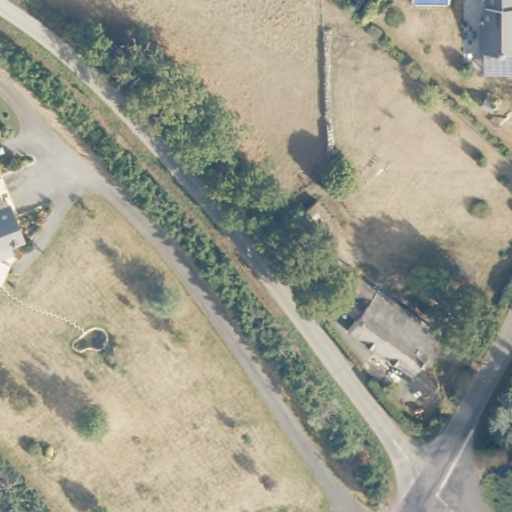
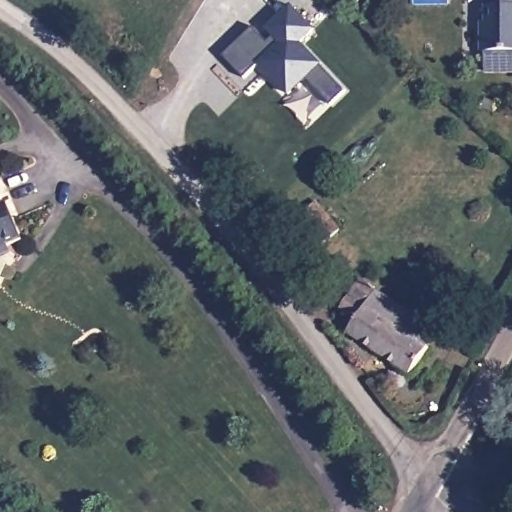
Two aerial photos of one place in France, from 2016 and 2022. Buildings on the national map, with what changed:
unchanged [(485,0),(512,0),(512,45),(480,45),(480,15),(485,15),(485,0)]
new [(225,56),(253,27),(268,43),(274,37),(267,29),(291,4),(314,29),(301,43),(346,91),(332,105),(307,80),(290,97),(259,64),(245,77),(225,56)]
unchanged [(3,202),(7,200),(23,238),(12,243),(7,245),(0,254),(0,194),(3,202)]
unchanged [(316,246),(294,219),(318,196),(343,225),(316,246)]
unchanged [(351,327),(356,317),(341,302),(359,276),(442,329),(416,369),(351,327)]

